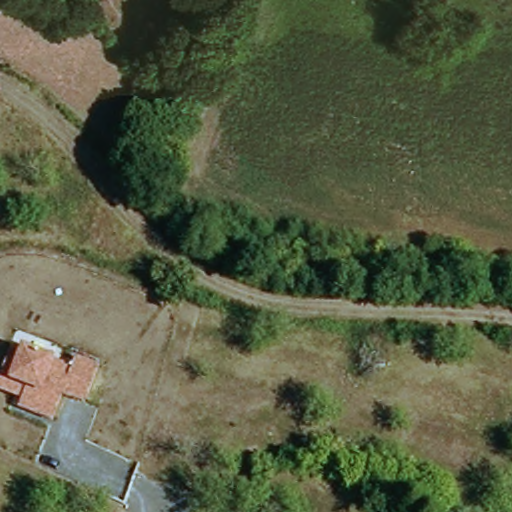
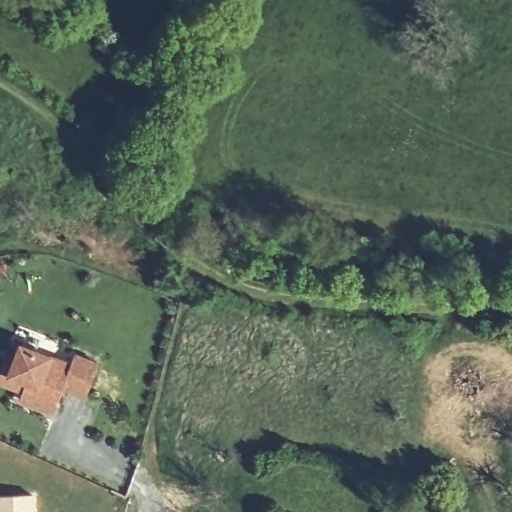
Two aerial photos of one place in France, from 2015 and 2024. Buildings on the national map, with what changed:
unchanged [(72,363),(75,353),(100,362),(88,397),(65,389),(56,415),(22,400),(24,392),(0,383),(0,374),(12,342),(72,363)]
new [(35,492),(36,512),(0,512),(0,494),(35,492)]

